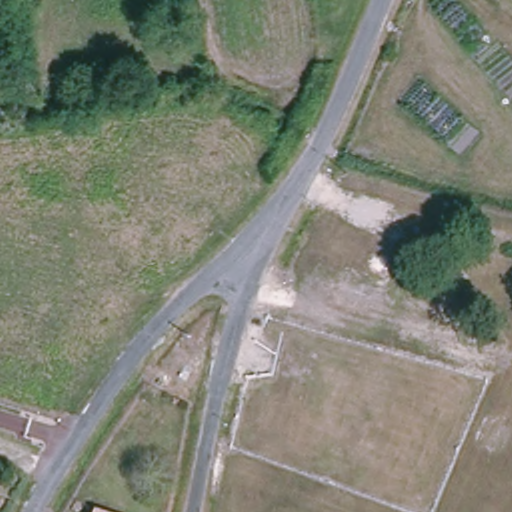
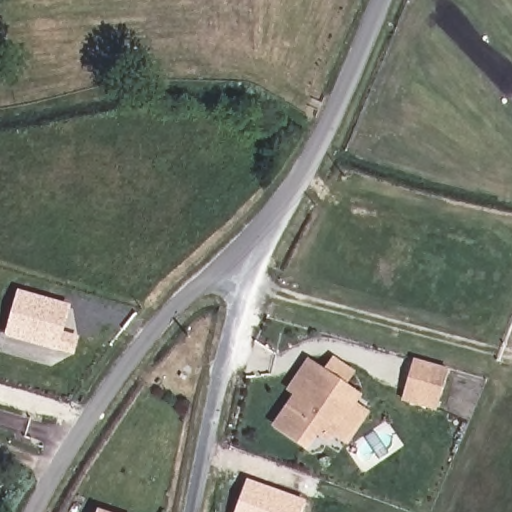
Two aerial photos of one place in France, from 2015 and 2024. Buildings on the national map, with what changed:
new [(81,336),(75,355),(5,334),(18,289),(72,305),(65,331),(81,336)]
new [(291,395),(287,391),(308,358),(324,368),(332,356),(357,372),(350,386),(364,395),(358,403),(370,412),(347,445),(333,436),(329,444),(316,437),(307,450),(272,426),(291,395)]
new [(413,360),(447,366),(436,410),(402,401),(413,360)]
new [(302,512),(235,512),(247,479),(306,500),(302,512)]

